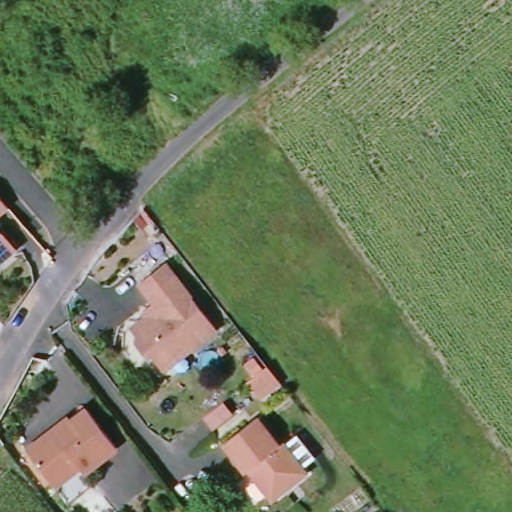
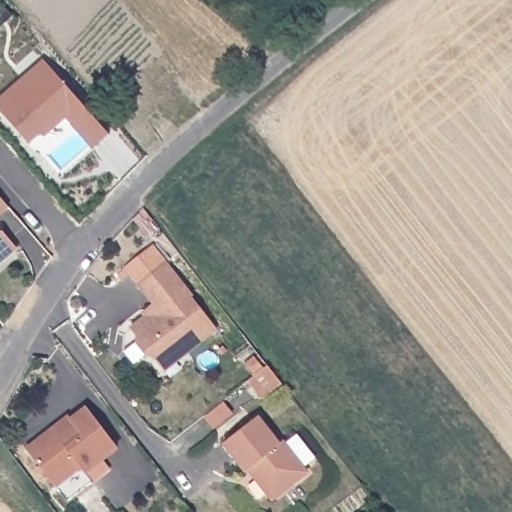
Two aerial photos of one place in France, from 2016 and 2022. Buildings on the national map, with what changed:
new [(67,119),(44,138),(40,133),(30,143),(0,110),(0,97),(43,59),(110,135),(92,149),(67,119)]
unchanged [(0,215),(0,201),(7,209),(0,215)]
unchanged [(0,265),(0,234),(1,234),(15,251),(0,265)]
unchanged [(152,359),(148,352),(141,356),(132,343),(135,337),(132,328),(146,317),(142,313),(152,305),(156,309),(129,265),(152,246),(215,328),(185,351),(159,368),(152,359)]
unchanged [(277,361),(290,377),(270,392),(257,376),(277,361)]
unchanged [(32,443),(50,429),(64,418),(67,421),(82,410),(111,450),(80,474),(75,468),(49,488),(32,465),(22,451),(32,443)]
unchanged [(224,444),(256,417),(281,450),(286,444),(307,471),(277,493),(265,495),(257,485),(244,469),(224,444)]

